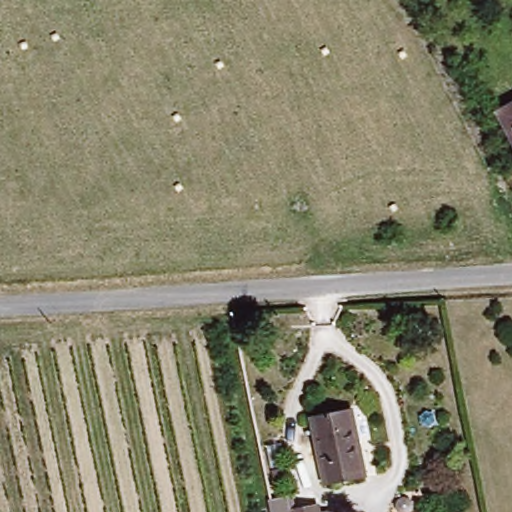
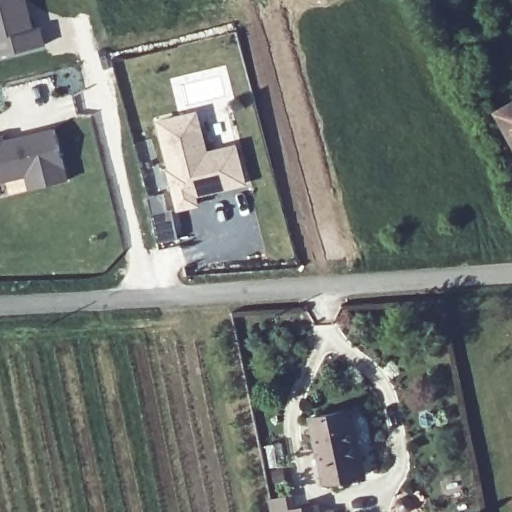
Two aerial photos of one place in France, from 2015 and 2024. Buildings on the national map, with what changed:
new [(0,0),(25,0),(32,30),(39,28),(42,45),(0,55),(0,0)]
unchanged [(512,109),(512,140),(499,116),(512,109)]
new [(207,150),(237,143),(246,185),(195,198),(198,206),(176,212),(153,121),(197,112),(207,150)]
new [(56,127),(68,178),(29,188),(26,177),(0,183),(0,135),(1,141),(56,127)]
unchanged [(346,409),(361,473),(320,482),(304,418),(346,409)]
unchanged [(270,512),(269,508),(265,494),(286,489),(289,503),(315,498),(319,512),(270,512)]

